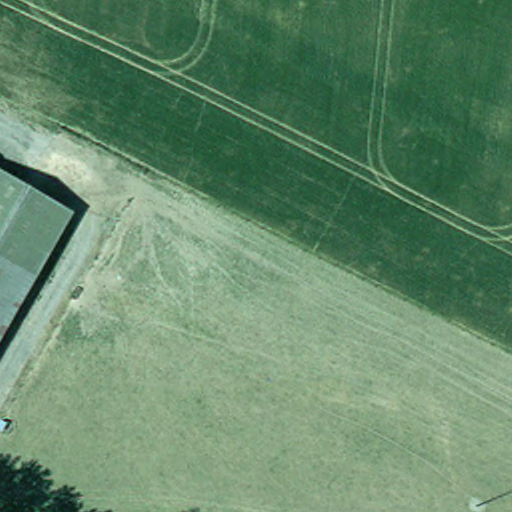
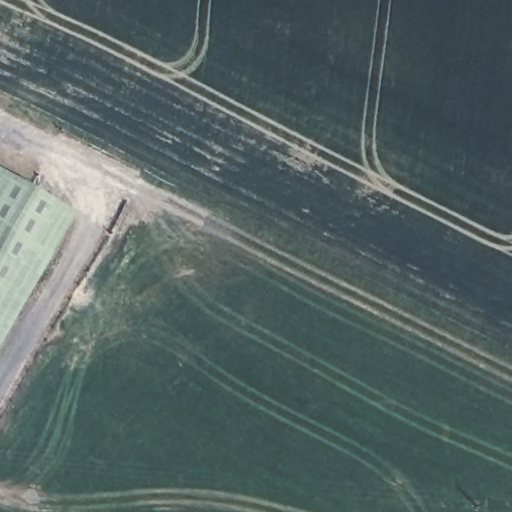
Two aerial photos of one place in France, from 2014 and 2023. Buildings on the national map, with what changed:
unchanged [(0,305),(0,167),(60,202),(0,305)]

